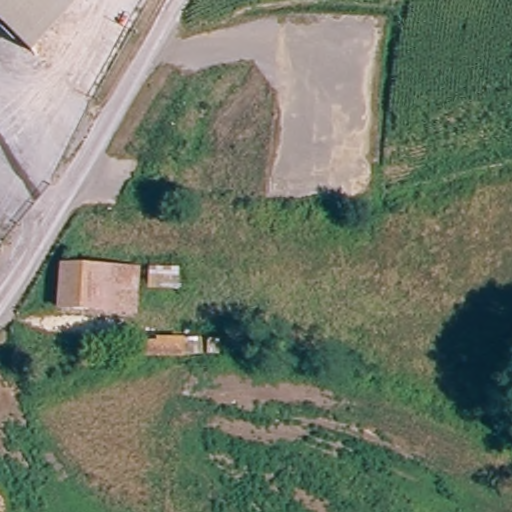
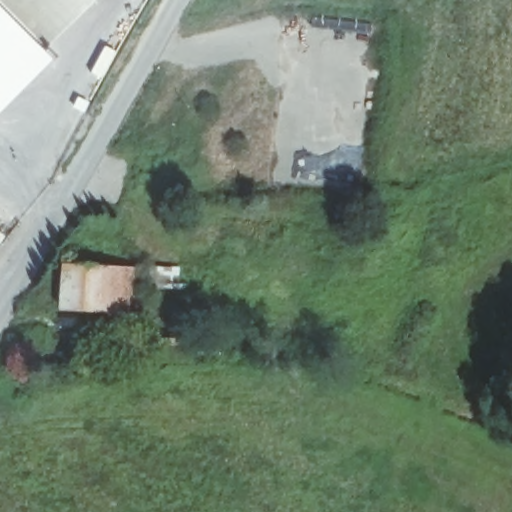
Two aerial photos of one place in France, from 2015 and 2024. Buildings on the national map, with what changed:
unchanged [(0,25),(0,0),(91,0),(32,59),(0,25)]
new [(43,47),(53,57),(0,109),(0,25),(32,59),(43,47)]
unchanged [(180,269),(178,291),(146,289),(148,267),(180,269)]
unchanged [(132,313),(60,311),(64,272),(135,272),(132,313)]

